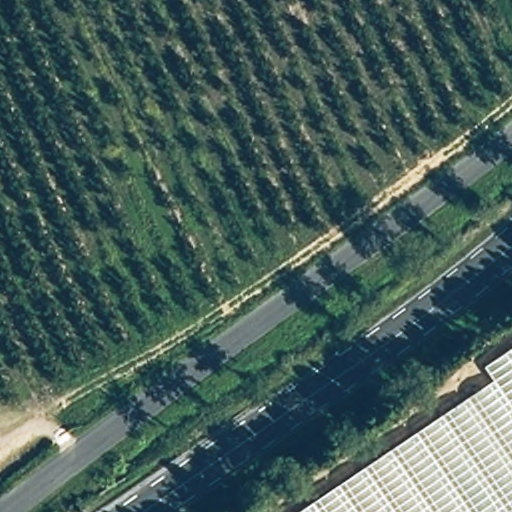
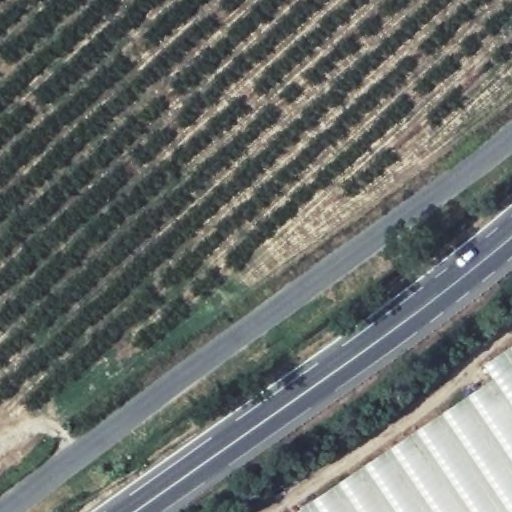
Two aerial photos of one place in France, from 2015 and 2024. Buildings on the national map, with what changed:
unchanged [(482,366),(512,346),(512,512),(297,512),(490,381),(482,366)]

